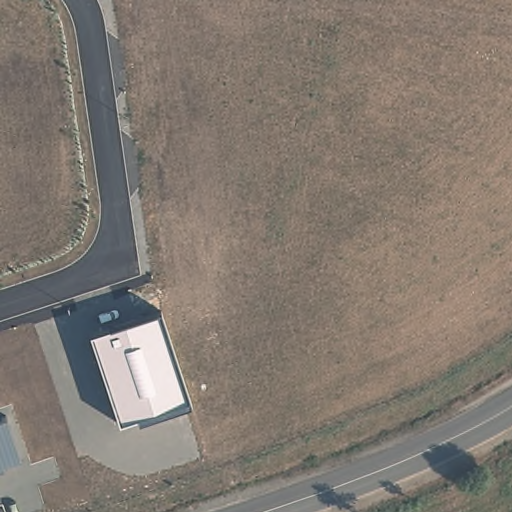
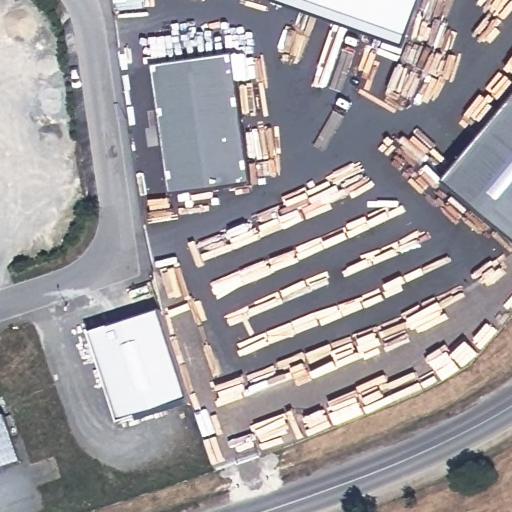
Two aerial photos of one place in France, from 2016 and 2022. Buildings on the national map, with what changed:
new [(271,4),(273,0),(426,0),(408,51),(271,4)]
new [(234,55),(252,186),(170,197),(152,67),(234,55)]
new [(443,184),(512,102),(512,240),(443,184)]
unchanged [(190,405),(120,425),(89,333),(161,311),(190,405)]
unchanged [(1,467),(1,472),(0,472),(0,417),(5,415),(21,460),(1,467)]

